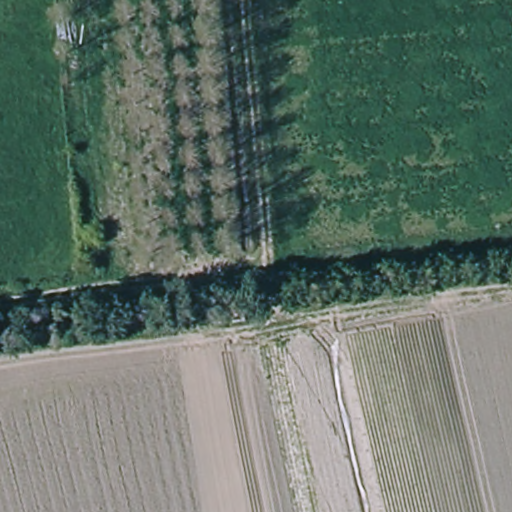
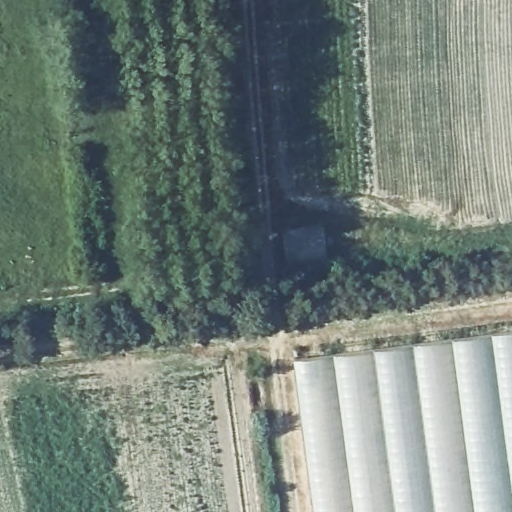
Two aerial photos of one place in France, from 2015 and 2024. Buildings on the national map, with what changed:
new [(512,329),(512,512),(312,512),(292,359),(512,329)]

